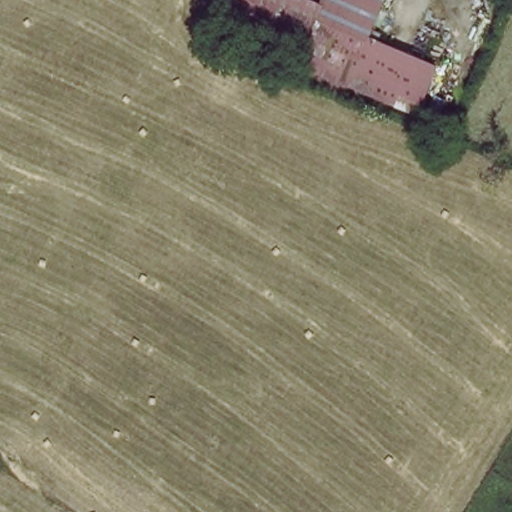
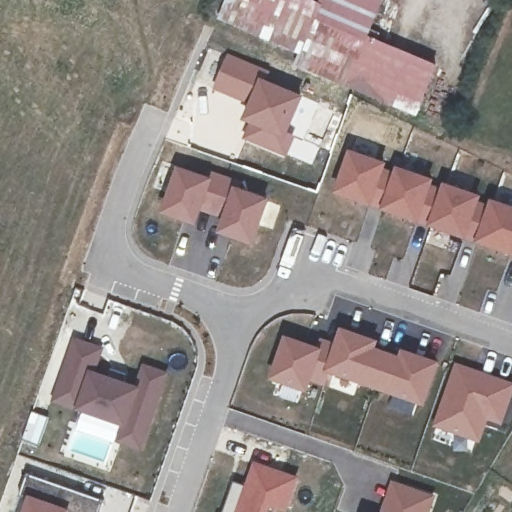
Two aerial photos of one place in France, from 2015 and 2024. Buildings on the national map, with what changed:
unchanged [(256,3),(248,0),(258,0),(256,3)]
unchanged [(373,37),(440,67),(420,117),(257,41),(272,0),(305,0),(328,8),(332,0),(388,0),(373,37)]
new [(270,71),(266,80),(302,96),(289,133),(295,136),(287,159),(242,140),(248,125),(241,122),(248,105),(211,89),(228,52),(270,71)]
new [(350,153),(512,211),(512,254),(337,191),(350,153)]
new [(174,165),(210,176),(212,171),(234,178),(232,185),(220,218),(200,212),(196,225),(158,212),(174,165)]
new [(220,218),(232,185),(270,198),(254,246),(216,233),(220,218)]
new [(283,334),(317,345),(320,337),(334,341),(338,327),(379,340),(377,348),(398,355),(400,349),(439,361),(424,406),(418,404),(413,416),(387,407),(392,395),(331,376),(327,386),(311,382),(307,393),(301,391),(297,402),(277,396),(282,384),(267,378),(283,334)]
new [(104,346),(96,373),(135,386),(143,363),(168,373),(142,453),(114,444),(120,427),(50,401),(73,337),(104,346)]
new [(512,382),(512,398),(502,426),(487,421),(480,444),(431,428),(454,362),(512,382)]
new [(288,512),(286,512),(270,507),(269,512),(220,512),(233,480),(244,484),(252,460),(300,476),(288,512)]
new [(20,494),(26,474),(102,501),(99,512),(25,512),(30,500),(20,494)]
new [(437,493),(431,512),(378,512),(390,479),(437,493)]

